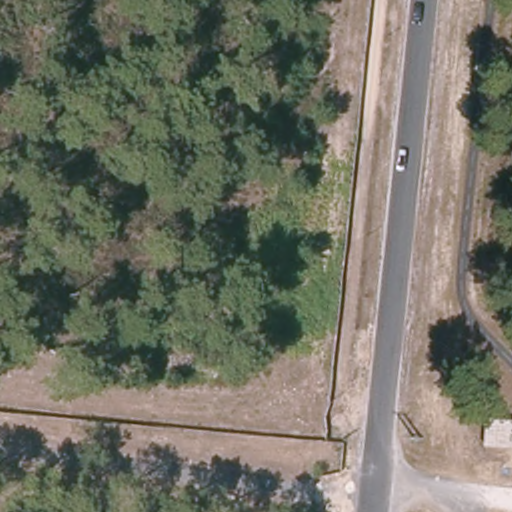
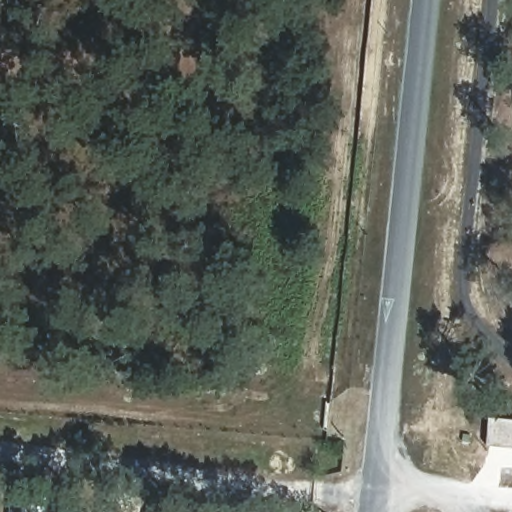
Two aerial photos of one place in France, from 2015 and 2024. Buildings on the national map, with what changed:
unchanged [(487,421),(512,422),(512,449),(487,444),(487,421)]

